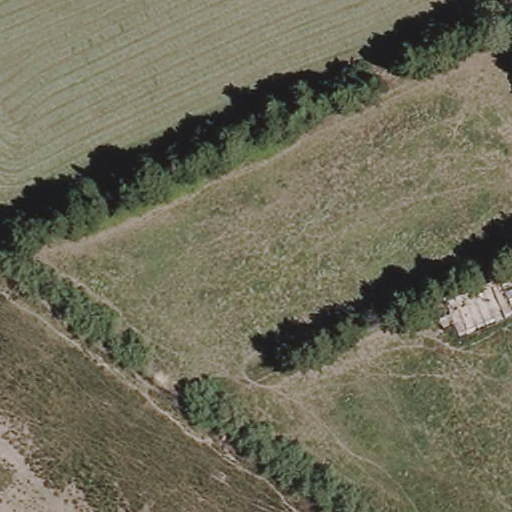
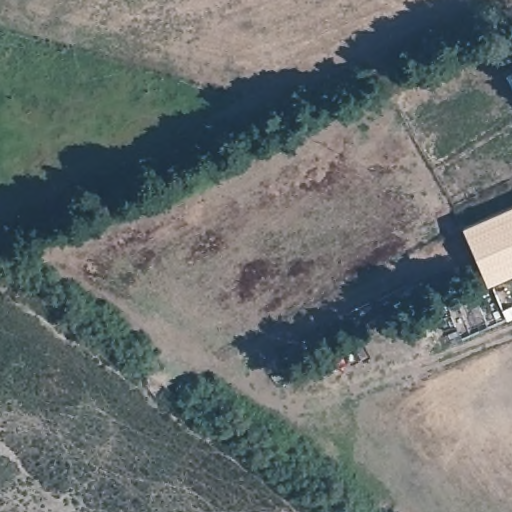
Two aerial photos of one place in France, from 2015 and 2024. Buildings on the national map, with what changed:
new [(486,285),(461,227),(512,204),(512,273),(486,285)]

